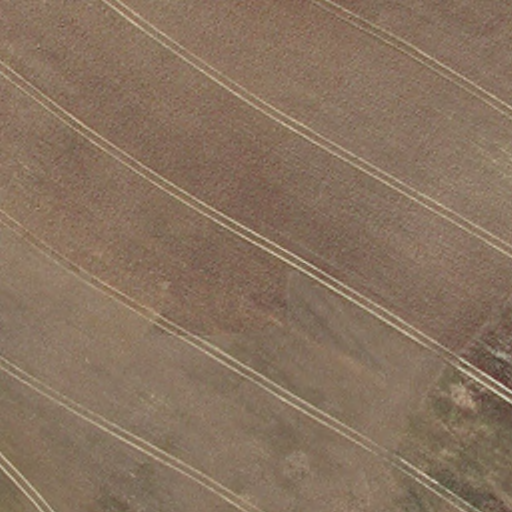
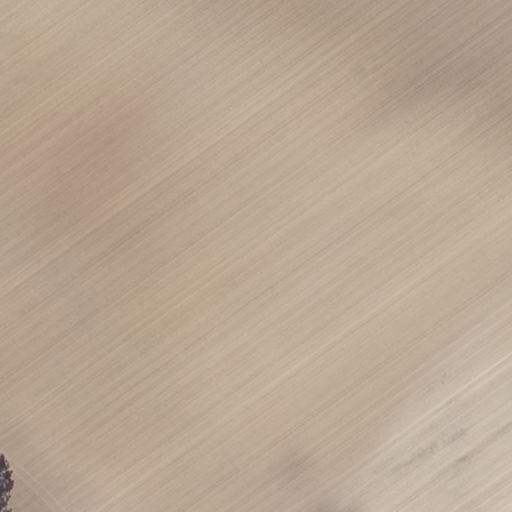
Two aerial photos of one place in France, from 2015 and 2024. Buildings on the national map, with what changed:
[]

